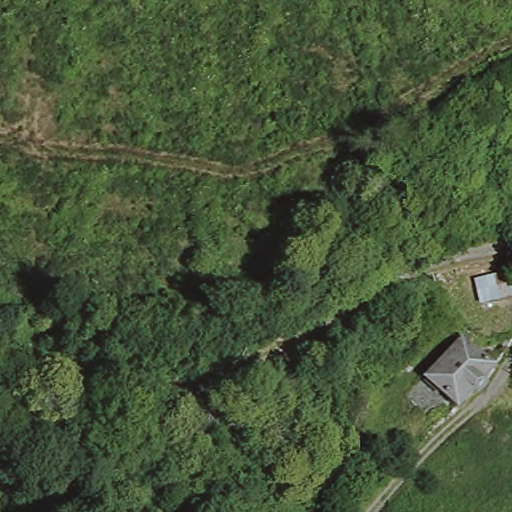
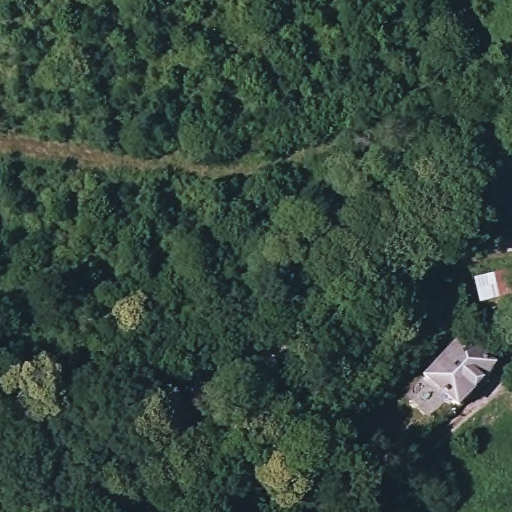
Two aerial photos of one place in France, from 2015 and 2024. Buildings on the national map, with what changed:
unchanged [(502,241),(486,245),(482,217),(497,212),(502,241)]
unchanged [(484,302),(477,275),(497,272),(499,283),(512,281),(512,294),(484,302)]
unchanged [(465,369),(457,365),(439,388),(460,406),(455,409),(422,376),(457,341),(475,357),(465,369)]

